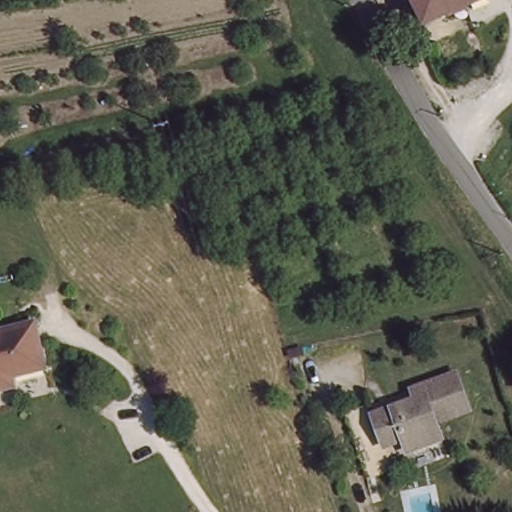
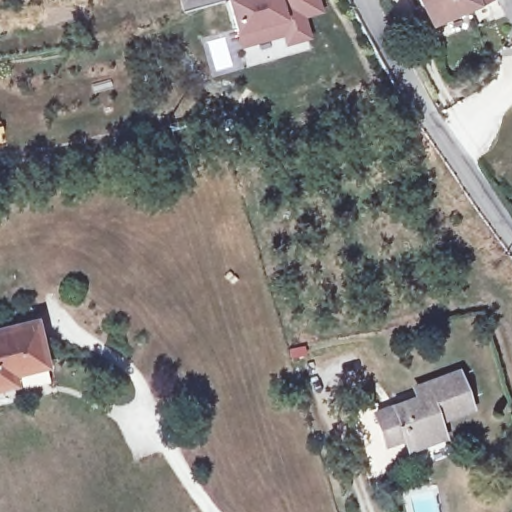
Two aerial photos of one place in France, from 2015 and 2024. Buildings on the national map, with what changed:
new [(233,32),(224,0),(319,0),(323,13),(304,18),(310,40),(284,47),(281,36),(240,48),(233,32)]
unchanged [(475,6),(427,27),(414,0),(488,0),(475,6)]
unchanged [(13,376),(15,389),(0,392),(0,331),(32,323),(44,368),(13,376)]
unchanged [(427,395),(425,388),(455,379),(468,416),(445,424),(450,441),(413,453),(409,442),(386,449),(375,412),(427,395)]

